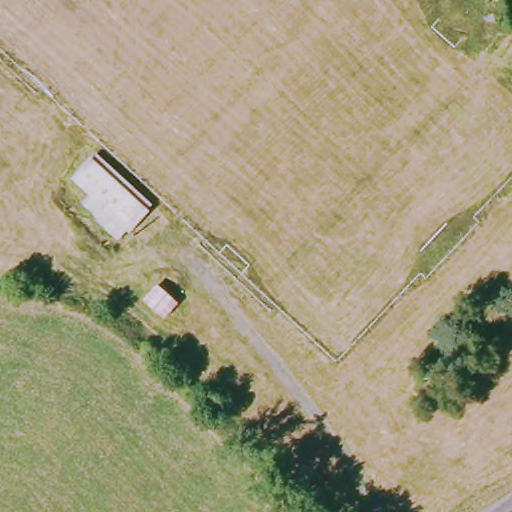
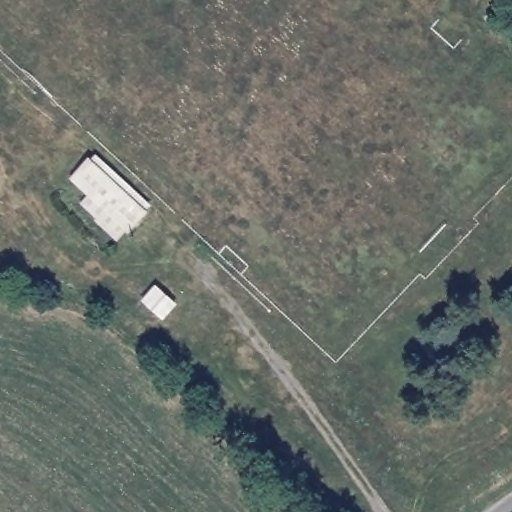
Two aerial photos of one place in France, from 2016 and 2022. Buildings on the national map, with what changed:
unchanged [(148,210),(128,235),(123,232),(113,243),(80,211),(86,201),(69,185),(90,160),(148,210)]
unchanged [(128,350),(110,332),(114,327),(120,319),(140,335),(132,344),(128,350)]

